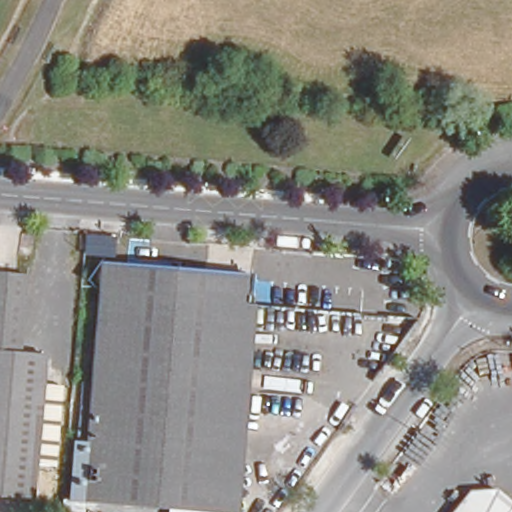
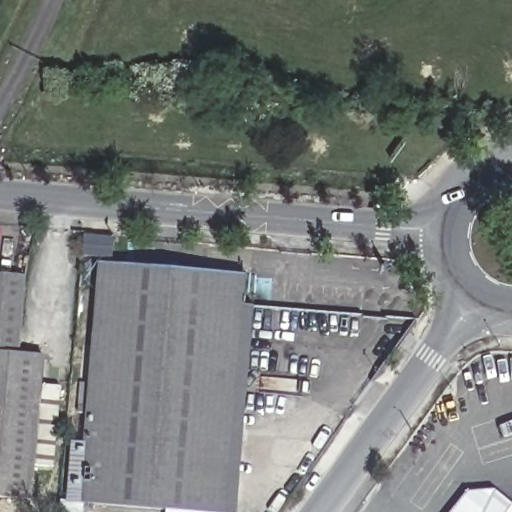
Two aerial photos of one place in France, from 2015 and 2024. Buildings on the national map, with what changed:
unchanged [(81,379),(89,379),(99,265),(244,276),(255,278),(235,512),(220,512),(162,508),(79,500),(83,458),(75,457),(76,446),(84,447),(84,439),(76,439),(79,404),(81,379)]
unchanged [(18,358),(43,360),(41,389),(63,391),(56,471),(34,469),(31,503),(0,501),(0,279),(25,280),(18,358)]
unchanged [(484,492),(508,509),(507,512),(450,512),(458,500),(484,492)]
unchanged [(208,512),(162,512),(162,508),(208,512)]

